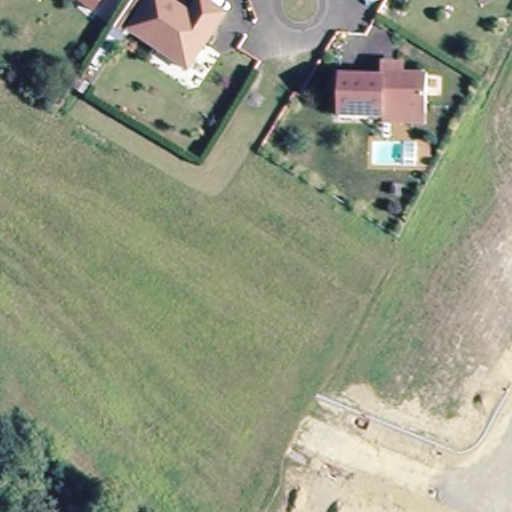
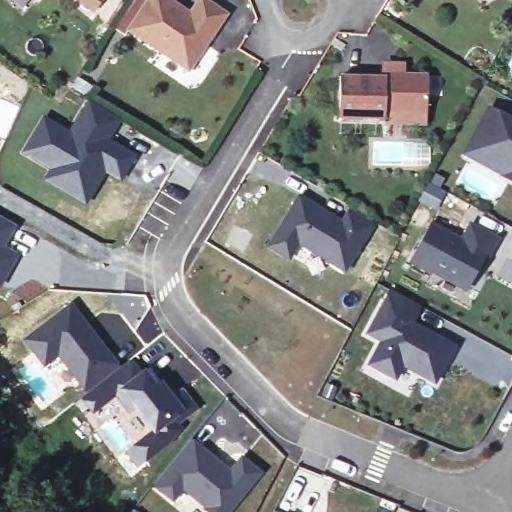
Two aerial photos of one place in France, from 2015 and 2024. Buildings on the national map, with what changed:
unchanged [(189,71),(129,30),(150,0),(170,0),(190,14),(200,0),(206,0),(227,14),(189,71)]
unchanged [(427,120),(383,120),(384,114),(339,113),(339,71),(384,72),(385,60),(400,61),(399,69),(428,70),(427,120)]
new [(19,107),(6,140),(0,137),(0,98),(19,107)]
new [(44,114),(68,129),(88,98),(123,119),(112,138),(139,154),(122,182),(106,173),(87,205),(43,179),(49,168),(20,152),(44,114)]
new [(508,170),(497,165),(471,151),(497,104),(512,113),(512,177),(506,174),(508,170)]
new [(179,159),(200,170),(188,190),(166,181),(179,159)]
new [(434,172),(445,178),(439,188),(446,192),(436,210),(417,201),(434,172)]
new [(299,193),(341,218),(348,207),(377,223),(345,272),(300,245),(289,260),(265,246),(299,193)]
new [(18,225),(6,246),(20,254),(0,287),(0,215),(18,225)]
new [(436,223),(467,240),(476,223),(503,238),(494,255),(491,254),(473,288),(438,269),(436,272),(415,260),(436,223)]
new [(426,306),(417,323),(426,327),(461,346),(442,382),(409,365),(402,379),(376,364),(388,341),(374,334),(397,290),(426,306)]
new [(71,301),(121,366),(86,393),(57,357),(43,367),(21,339),(71,301)]
new [(86,393),(121,366),(132,358),(141,370),(147,366),(173,394),(183,386),(198,408),(181,423),(184,427),(137,467),(125,450),(151,429),(135,410),(129,414),(115,396),(90,414),(78,399),(86,393)]
new [(229,468),(243,454),(264,472),(231,512),(208,512),(184,491),(173,502),(152,485),(193,438),(229,468)]
new [(284,512),(281,512),(281,510),(284,512)]

